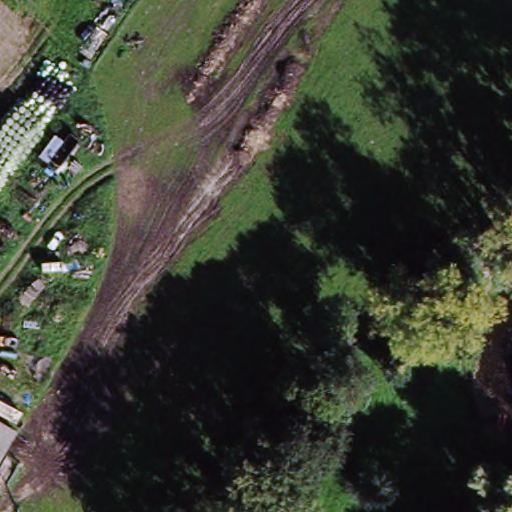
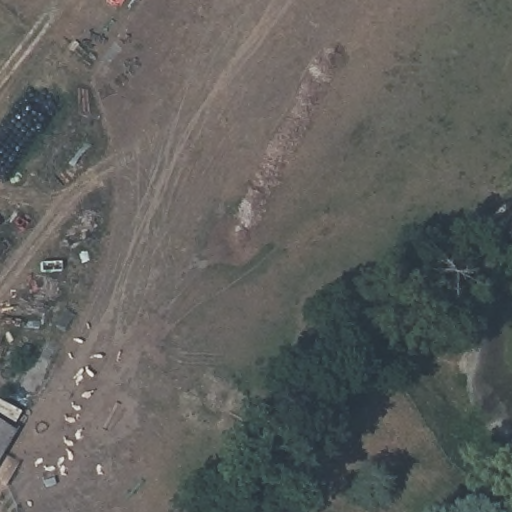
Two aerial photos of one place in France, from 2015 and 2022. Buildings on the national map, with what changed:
unchanged [(0,453),(0,428),(10,434),(0,453)]

